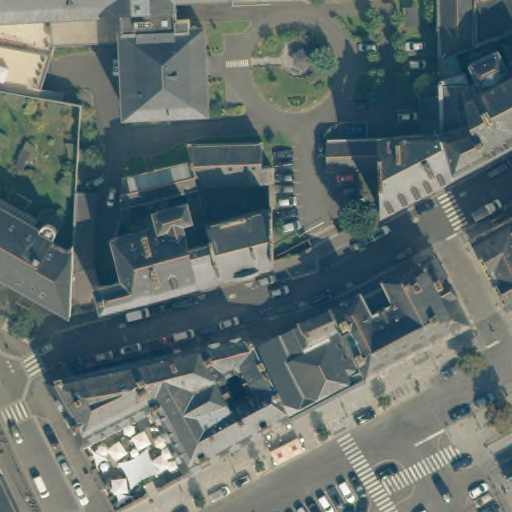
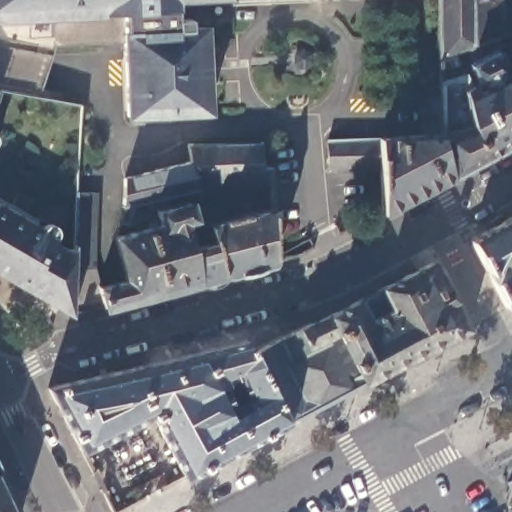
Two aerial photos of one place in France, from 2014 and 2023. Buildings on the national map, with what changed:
unchanged [(39,104),(0,96),(0,0),(281,0),(182,2),(182,17),(177,17),(177,22),(190,22),(191,32),(204,31),(205,116),(125,117),(124,42),(55,44),(39,103),(39,104)]
unchanged [(496,43),(476,51),(455,59),(441,65),(440,0),(476,0),(476,4),(511,0),(512,0),(512,47),(504,51),(499,42),(496,43)]
unchanged [(476,0),(511,0),(476,4),(476,0)]
unchanged [(477,87),(468,69),(498,55),(502,62),(512,57),(512,149),(453,181),(443,148),(442,91),(441,65),(455,59),(468,91),(477,87)]
unchanged [(423,141),(421,102),(425,102),(425,91),(442,91),(443,148),(453,181),(382,218),(380,172),(360,174),(329,175),(328,145),(358,144),(423,141)]
unchanged [(262,148),(263,172),(271,172),(271,184),(197,187),(190,151),(262,148)]
unchanged [(71,319),(75,252),(77,199),(99,200),(95,271),(99,290),(109,288),(126,285),(116,242),(160,231),(156,215),(189,207),(190,214),(202,211),(205,211),(207,219),(205,219),(207,228),(210,227),(272,212),(274,264),(274,268),(223,282),(197,290),(130,305),(104,312),(71,319)]
unchanged [(39,237),(43,229),(52,227),(55,229),(56,238),(53,245),(65,252),(75,252),(71,319),(0,279),(0,216),(39,237)]
unchanged [(470,241),(512,218),(512,304),(505,307),(470,241)]
unchanged [(431,268),(468,336),(365,390),(332,321),(431,268)]
unchanged [(365,390),(291,428),(254,356),(313,328),(313,330),(332,321),(365,390)]
unchanged [(83,457),(50,392),(249,347),(254,356),(291,428),(186,483),(152,420),(83,457)]
unchanged [(18,512),(0,512),(0,473),(18,512)]
unchanged [(512,481),(512,488),(509,483),(512,481)]

